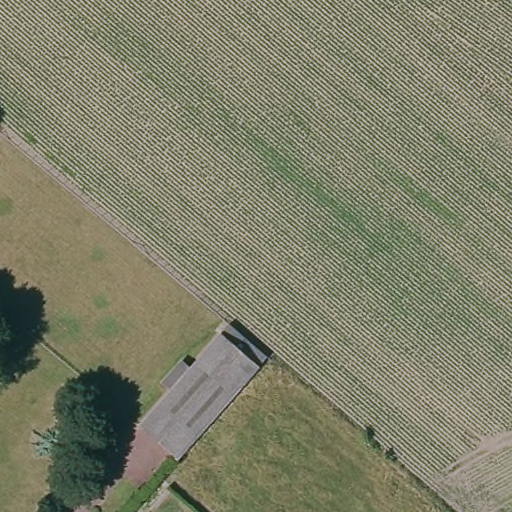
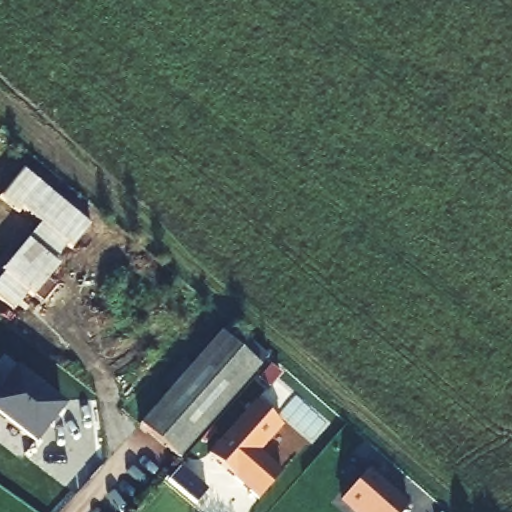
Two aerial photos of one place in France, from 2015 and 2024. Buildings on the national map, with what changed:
new [(67,244),(54,262),(58,266),(47,280),(55,288),(42,304),(28,293),(10,314),(0,305),(0,279),(4,276),(0,272),(0,270),(39,225),(20,210),(17,213),(0,199),(0,196),(22,171),(89,226),(72,247),(67,244)]
unchanged [(260,364),(180,457),(141,423),(225,330),(260,364)]
new [(34,444),(0,419),(0,387),(14,368),(65,407),(34,444)]
new [(281,428),(259,454),(280,473),(259,499),(207,455),(254,403),(281,428)]
new [(402,512),(349,512),(338,503),(367,471),(408,505),(402,512)]

